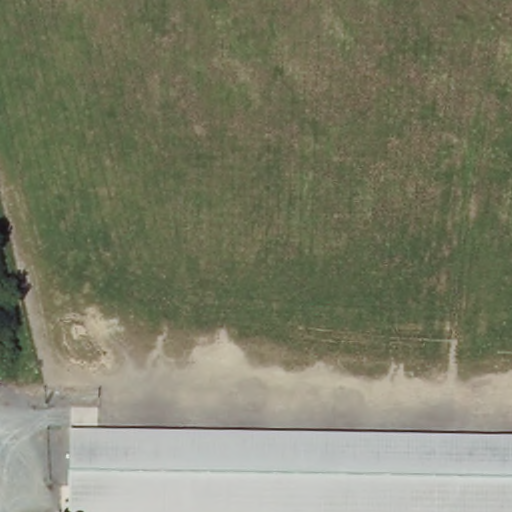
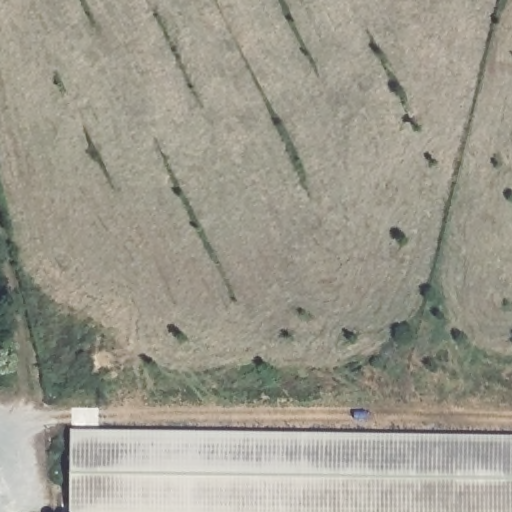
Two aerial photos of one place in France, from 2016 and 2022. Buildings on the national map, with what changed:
unchanged [(512,512),(72,512),(74,431),(512,435),(512,512)]

